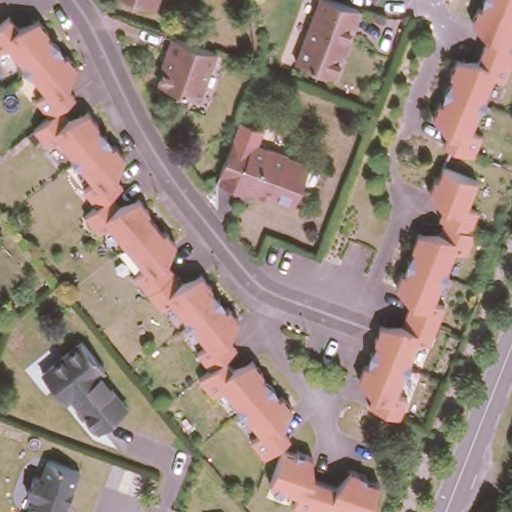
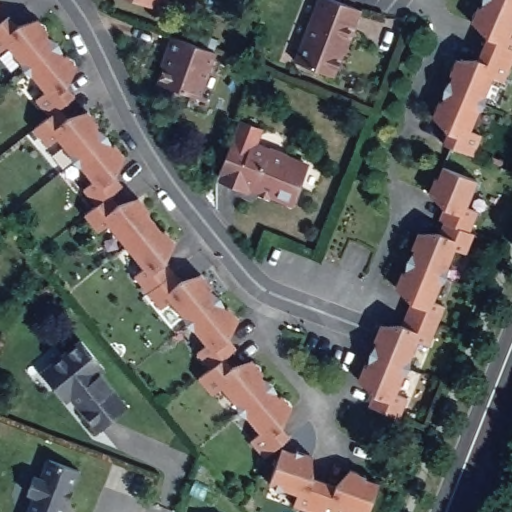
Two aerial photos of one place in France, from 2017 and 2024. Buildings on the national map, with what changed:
unchanged [(159,0),(157,7),(137,0),(159,0)]
unchanged [(347,41),(335,74),(299,60),(322,0),(346,0),(365,8),(352,44),(347,41)]
unchanged [(511,36),(496,74),(485,69),(462,125),(474,129),(465,149),(435,136),(440,125),(425,110),(431,94),(435,96),(445,75),(442,74),(450,59),(474,58),(481,35),(465,21),(470,5),(474,6),(476,0),(512,0),(512,1),(500,32),(511,36)]
unchanged [(12,25),(34,18),(45,30),(44,32),(61,54),(64,53),(74,66),(64,84),(70,93),(55,106),(63,115),(84,109),(95,123),(92,124),(109,145),(111,143),(122,156),(112,175),(119,185),(107,194),(115,203),(135,197),(146,209),(144,212),(160,232),(162,229),(173,243),(162,262),(177,279),(198,274),(209,287),(207,289),(223,308),(225,306),(236,319),(226,339),(234,348),(222,358),(229,367),(250,359),(260,373),(258,374),(277,397),(279,394),(290,407),(280,427),(287,436),(262,457),(248,439),(257,432),(220,386),(210,394),(198,379),(209,369),(195,351),(205,343),(168,298),(158,306),(132,274),(142,267),(105,221),(95,229),(82,214),(94,204),(80,188),(90,180),(53,135),(44,144),(30,128),(45,114),(32,99),(42,91),(3,45),(0,48),(0,18),(3,15),(12,25)]
unchanged [(200,96),(159,82),(170,53),(167,51),(173,34),(217,50),(200,96)]
unchanged [(264,122),(257,139),(269,144),(272,142),(292,149),(293,153),(310,159),(295,197),(251,179),(249,185),(217,173),(242,114),(264,122)]
unchanged [(472,178),(462,205),(474,209),(466,229),(470,231),(463,250),(452,246),(430,299),(442,303),(427,342),(415,338),(393,394),(405,398),(397,418),(367,406),(371,394),(356,379),(362,364),(365,364),(375,341),(372,340),(379,324),(400,324),(408,301),(393,287),(400,271),(402,272),(412,249),(410,247),(415,232),(437,232),(442,220),(437,219),(442,207),(427,192),(433,177),(435,178),(441,165),(472,178)]
unchanged [(77,344),(102,372),(98,374),(124,409),(90,431),(65,401),(60,403),(37,372),(77,344)]
unchanged [(364,475),(362,478),(377,483),(367,512),(347,512),(335,508),(334,512),(308,512),(292,507),(295,495),(267,485),(279,449),(293,453),(294,451),(310,456),(311,478),(333,485),(348,469),(364,475)]
unchanged [(27,499),(24,499),(34,476),(39,477),(45,462),(80,474),(67,512),(22,512),(27,499)]

